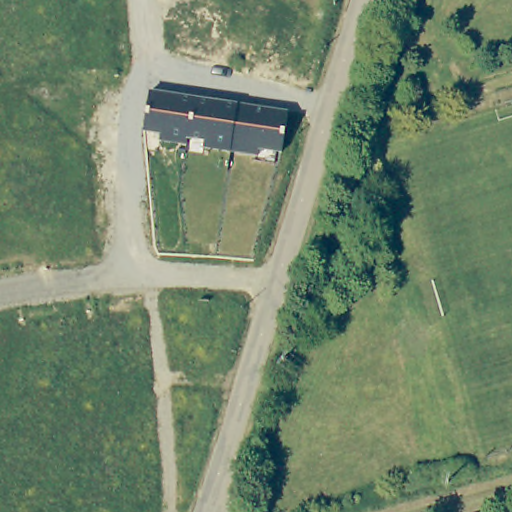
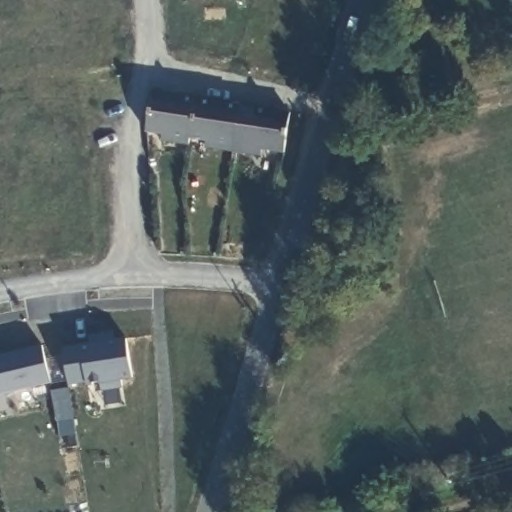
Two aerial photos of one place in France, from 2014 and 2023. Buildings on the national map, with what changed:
unchanged [(289,111),(283,152),(259,149),(258,156),(204,148),(204,141),(187,139),(186,145),(159,141),(161,135),(143,132),(151,91),(289,111)]
new [(133,378),(119,381),(121,388),(101,392),(99,380),(69,386),(61,348),(125,338),(133,378)]
new [(0,396),(0,354),(40,344),(50,384),(0,396)]

